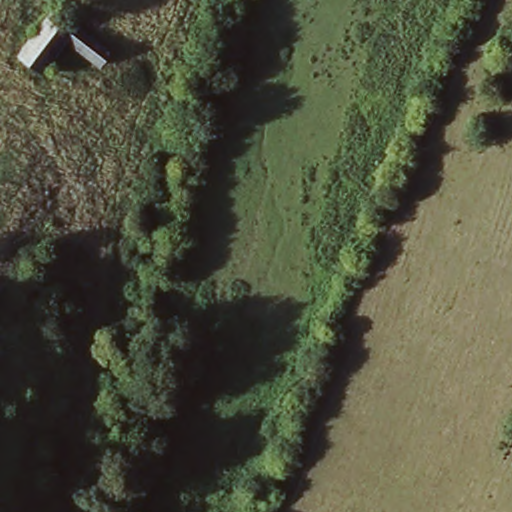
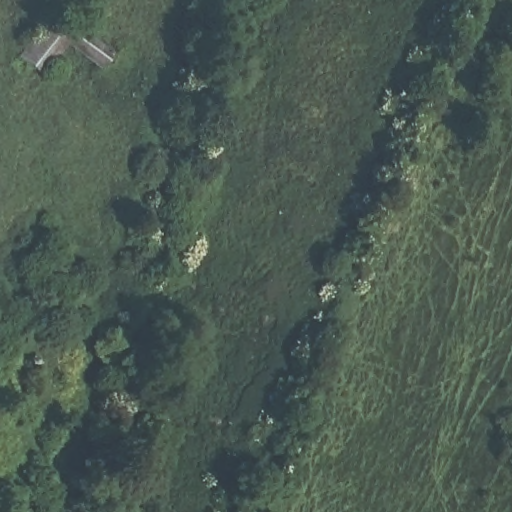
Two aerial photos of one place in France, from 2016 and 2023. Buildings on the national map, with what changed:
unchanged [(112,56),(103,70),(72,44),(43,82),(16,62),(51,12),(112,56)]

